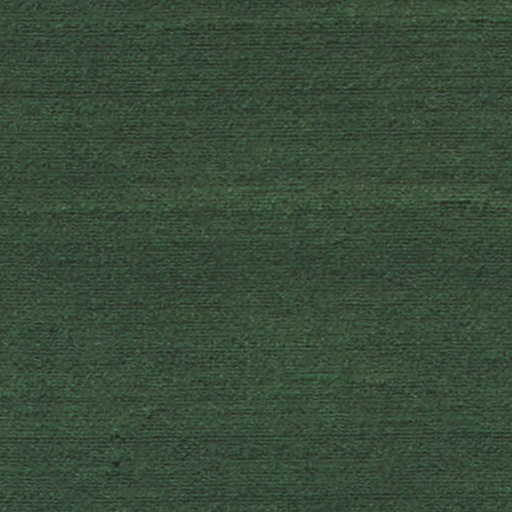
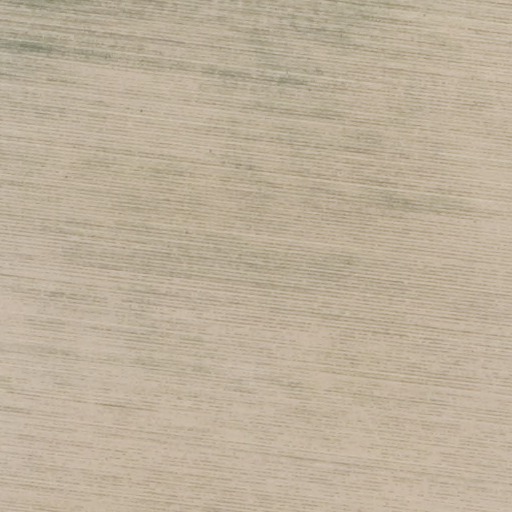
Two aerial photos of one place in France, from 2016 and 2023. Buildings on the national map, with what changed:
[]

